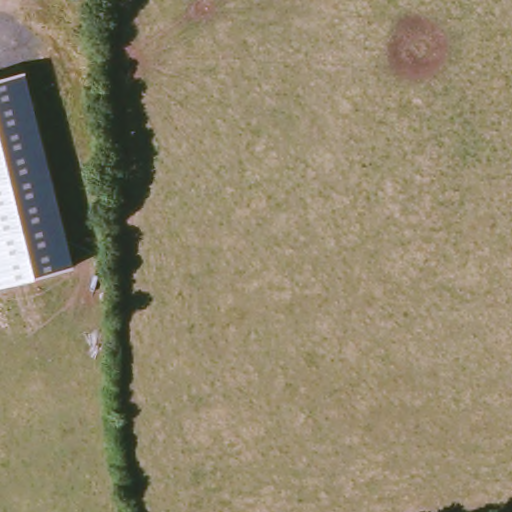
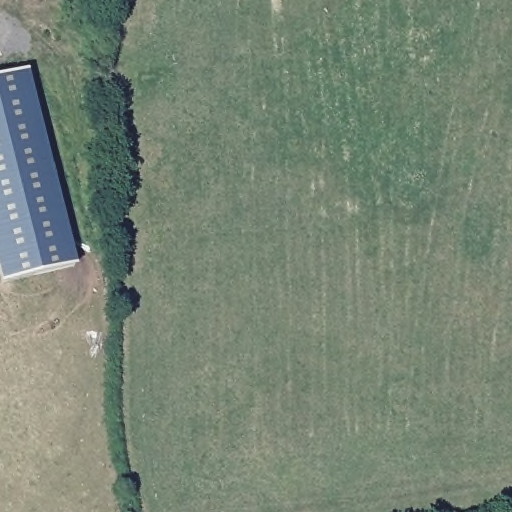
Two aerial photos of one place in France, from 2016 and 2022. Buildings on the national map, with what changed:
unchanged [(0,280),(0,79),(30,71),(77,267),(1,286),(0,280)]

